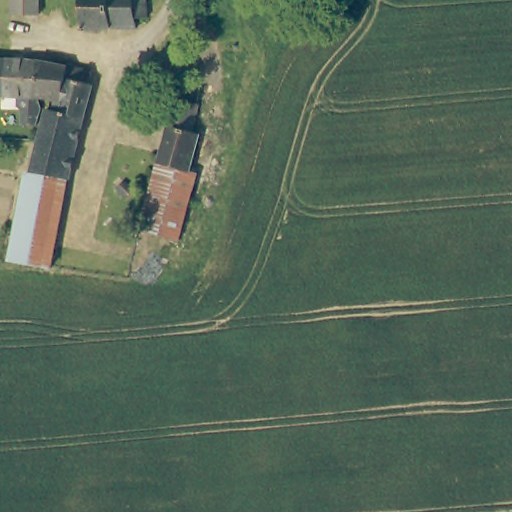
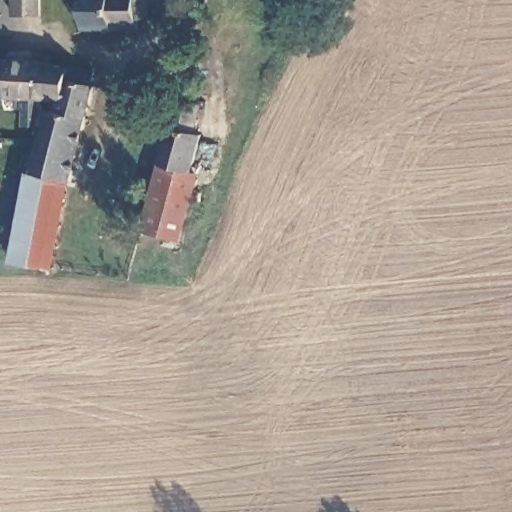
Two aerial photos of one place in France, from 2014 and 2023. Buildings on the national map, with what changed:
unchanged [(26,8),(19,8),(19,0),(49,0),(49,8),(26,8)]
unchanged [(144,25),(132,25),(132,37),(76,36),(76,0),(144,0),(144,25)]
unchanged [(90,71),(88,86),(92,87),(69,180),(67,180),(30,172),(36,150),(40,134),(32,133),(14,130),(14,118),(7,109),(4,99),(0,99),(0,61),(8,61),(38,62),(66,73),(68,70),(90,71)]
unchanged [(170,93),(194,101),(183,141),(158,132),(170,93)]
unchanged [(192,144),(181,180),(149,172),(158,132),(183,141),(192,144)]
unchanged [(30,172),(67,180),(48,272),(7,263),(25,171),(30,172)]
unchanged [(189,182),(174,251),(134,241),(138,223),(149,172),(181,180),(189,182)]

